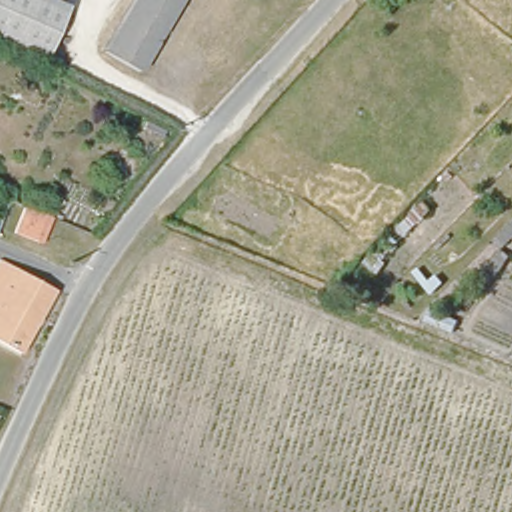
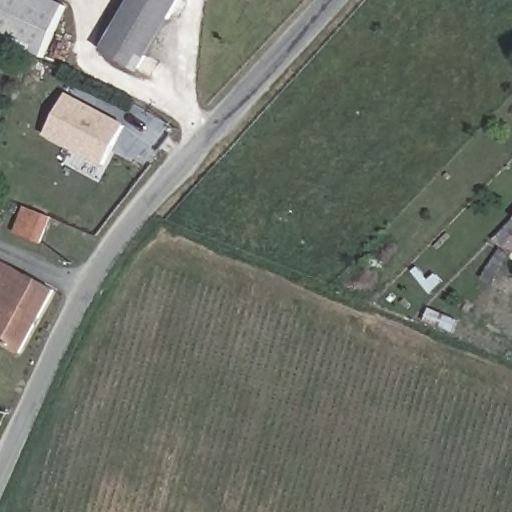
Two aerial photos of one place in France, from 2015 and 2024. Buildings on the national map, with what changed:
unchanged [(1,41),(0,40),(0,0),(44,0),(66,10),(41,60),(1,41)]
unchanged [(138,73),(101,52),(131,0),(181,0),(138,73)]
new [(45,136),(66,94),(126,125),(104,167),(45,136)]
unchanged [(42,247),(14,234),(26,207),(55,221),(42,247)]
unchanged [(2,219),(0,223),(0,217),(2,219)]
unchanged [(52,290),(17,351),(0,340),(0,259),(10,263),(52,290)]

